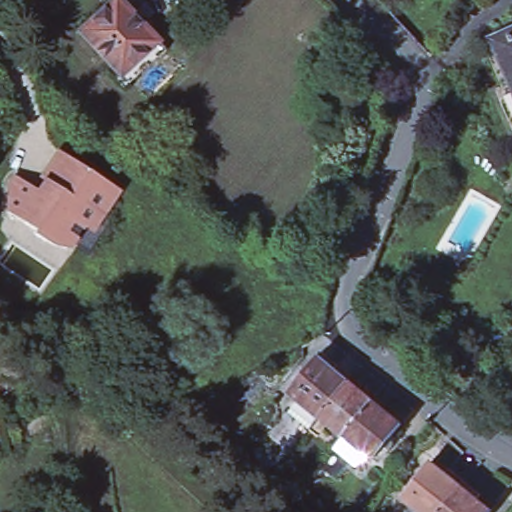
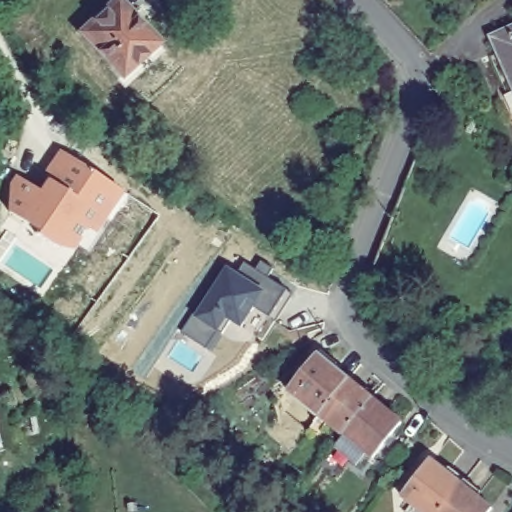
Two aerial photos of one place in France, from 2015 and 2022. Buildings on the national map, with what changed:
unchanged [(119,0),(127,0),(165,44),(128,75),(86,30),(119,0)]
unchanged [(512,39),(512,69),(500,44),(512,39)]
unchanged [(35,233),(37,230),(12,210),(12,185),(33,185),(41,191),(48,181),(46,178),(65,153),(109,184),(122,194),(117,201),(104,220),(96,214),(69,251),(47,243),(35,233)]
new [(274,269),(268,278),(287,290),(292,294),(276,321),(270,318),(242,300),(231,320),(211,352),(181,333),(193,314),(197,317),(227,269),(237,275),(245,264),(256,270),(261,262),(274,269)]
unchanged [(301,402),(291,394),(322,357),(326,352),(343,366),(340,370),(352,381),(323,417),(322,419),(316,425),(295,409),(301,402)]
unchanged [(352,381),(376,399),(348,434),(347,435),(323,417),(352,381)]
unchanged [(346,446),(352,437),(348,434),(376,399),(408,424),(380,459),(373,454),(367,462),(346,446)]
unchanged [(412,506),(403,498),(433,461),(446,472),(450,468),(466,482),(442,512),(407,512),(412,506)]
unchanged [(466,482),(480,493),(480,497),(493,509),(491,512),(442,512),(466,482)]

